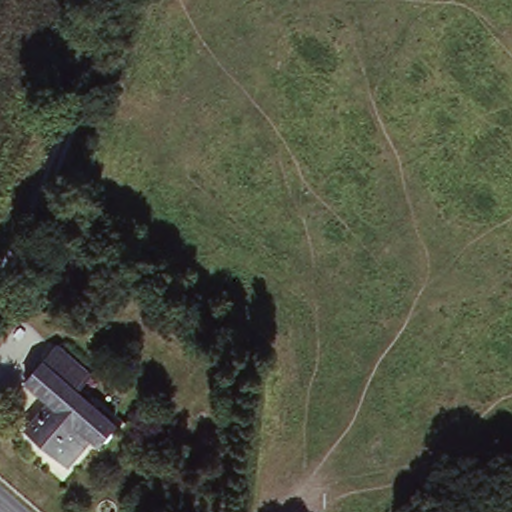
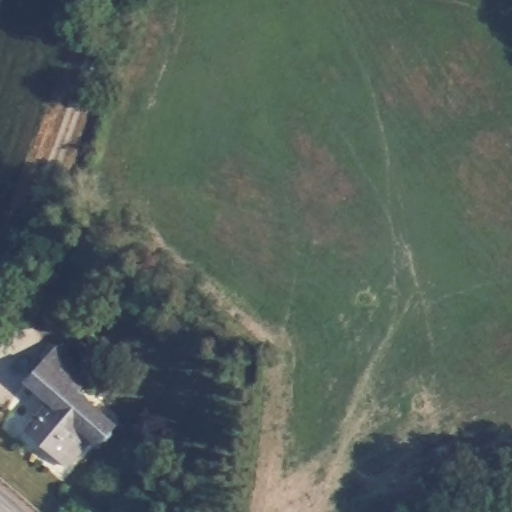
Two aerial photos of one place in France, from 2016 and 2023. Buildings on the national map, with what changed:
unchanged [(93,437),(65,463),(29,424),(53,399),(36,381),(36,376),(67,344),(94,372),(82,384),(122,427),(104,447),(93,437)]

